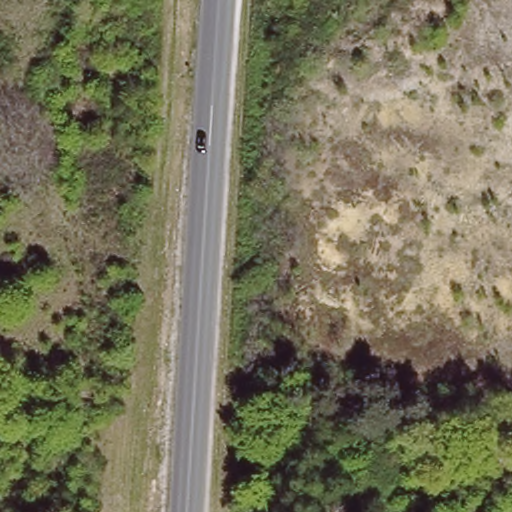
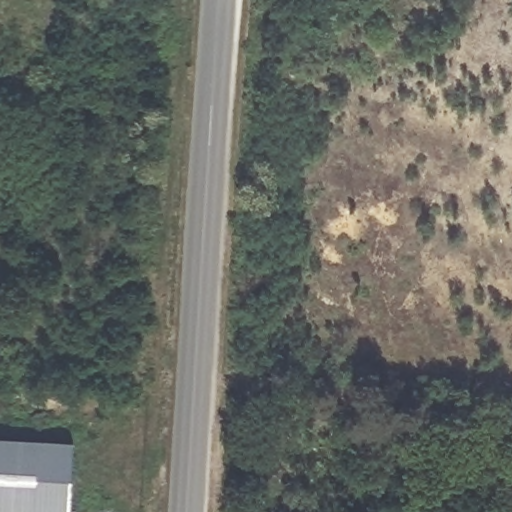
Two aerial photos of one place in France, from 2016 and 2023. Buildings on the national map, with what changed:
new [(74,440),(70,512),(13,512),(0,511),(0,435),(74,440)]

